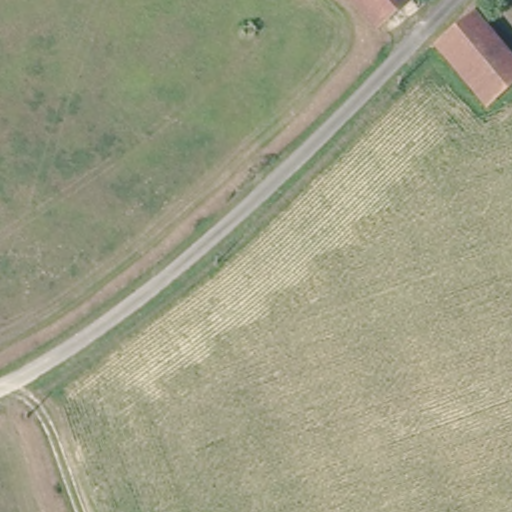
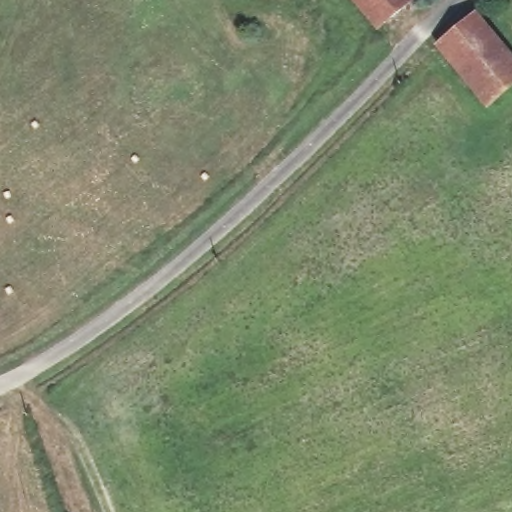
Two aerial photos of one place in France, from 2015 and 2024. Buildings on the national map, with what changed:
unchanged [(356,0),(408,0),(377,27),(356,0)]
unchanged [(441,47),(477,14),(512,56),(512,83),(489,104),(441,47)]

